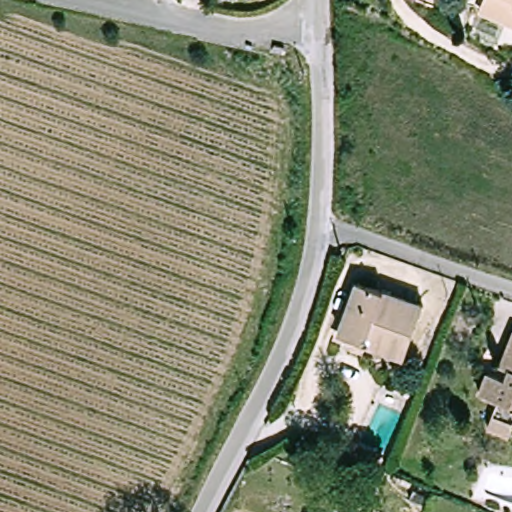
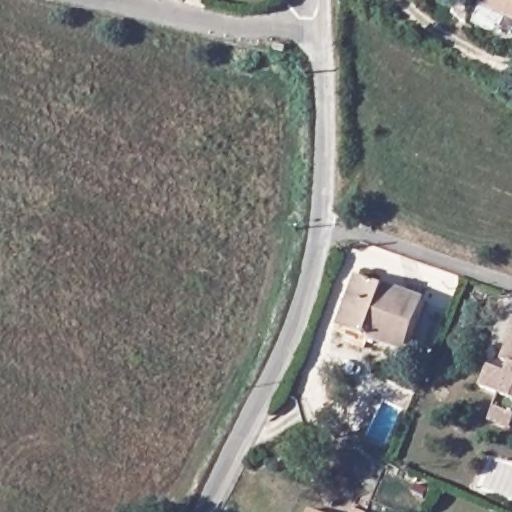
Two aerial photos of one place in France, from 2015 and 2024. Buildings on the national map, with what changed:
unchanged [(482,7),(485,0),(512,0),(512,22),(482,7)]
unchanged [(406,358),(353,332),(366,301),(356,296),(365,272),(429,301),(406,358)]
unchanged [(504,358),(512,338),(512,362),(504,358)]
unchanged [(492,413),(499,393),(482,387),(492,365),(509,372),(512,366),(512,422),(492,413)]
unchanged [(373,512),(359,512),(362,505),(374,510),(373,512)]

